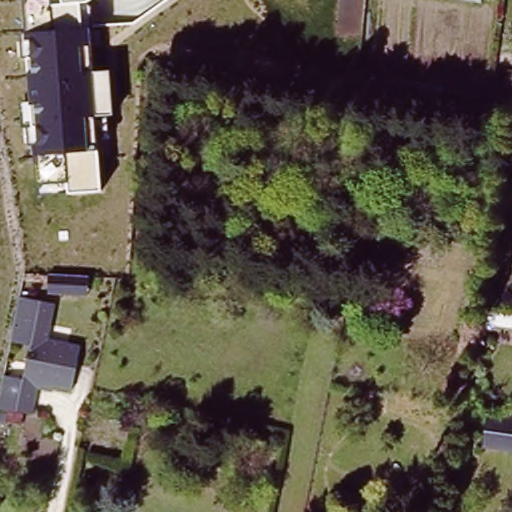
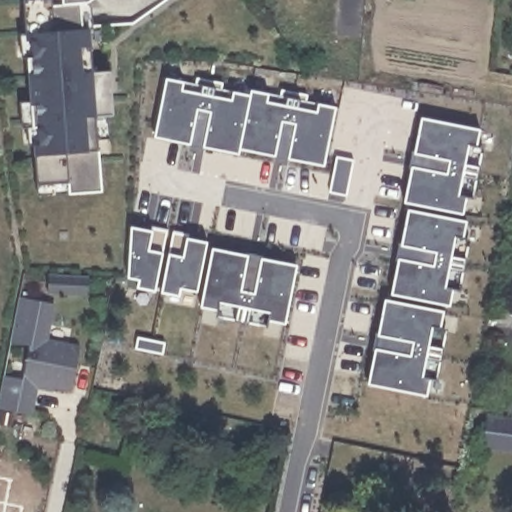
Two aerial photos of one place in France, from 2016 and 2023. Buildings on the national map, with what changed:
unchanged [(36,154),(34,132),(20,132),(18,101),(31,101),(26,36),(23,0),(88,0),(87,0),(90,29),(94,71),(112,69),(116,113),(110,114),(110,140),(99,141),(102,190),(67,194),(37,196),(37,183),(36,154)]
new [(195,82),(196,76),(209,79),(203,109),(197,108),(190,143),(171,139),(171,136),(154,133),(165,77),(195,82)]
new [(209,110),(203,109),(209,79),(222,81),(221,88),(250,93),(241,145),(240,150),(223,146),(222,149),(202,145),(209,110)]
new [(250,93),(251,90),(281,95),(282,89),(294,91),(289,120),(282,119),(276,154),(256,150),(257,148),(241,145),(250,93)]
new [(295,121),(289,120),(294,91),(307,94),(306,100),(336,106),(325,161),(308,157),(307,160),(288,156),(295,121)]
new [(416,133),(419,133),(422,116),(480,127),(474,157),(480,157),(477,171),(446,165),(447,159),(412,153),(416,133)]
new [(337,155),(354,159),(347,194),(329,190),(337,155)]
new [(410,185),(407,185),(410,165),(445,171),(446,165),(477,171),(474,192),(467,191),(463,213),(406,202),(410,185)]
new [(405,225),(407,225),(411,209),(469,219),(462,249),(469,251),(466,263),(435,257),(437,251),(401,245),(405,225)]
new [(136,287),(137,280),(122,277),(132,226),(151,230),(152,227),(167,230),(155,292),(136,287)]
new [(173,232),(188,234),(187,237),(207,241),(197,292),(181,289),(180,296),(161,293),(173,232)]
new [(211,250),(229,253),(229,250),(249,254),(242,290),(248,291),(242,321),(229,319),(230,313),(200,307),(211,250)]
new [(248,291),(254,292),(262,256),(281,261),(281,263),(297,267),(286,324),(257,318),(255,324),(242,321),(248,291)]
new [(398,277),(395,277),(399,257),(434,264),(435,257),(466,263),(462,285),(456,284),(452,305),(395,295),(398,277)]
new [(88,292),(67,291),(46,290),(47,272),(68,273),(89,274),(88,292)]
unchanged [(22,377),(29,343),(10,339),(19,294),(53,301),(46,338),(80,345),(71,388),(37,381),(31,410),(0,407),(0,388),(3,373),(22,377)]
new [(382,314),(385,315),(387,299),(445,310),(440,340),(445,340),(442,354),(412,348),(412,341),(377,334),(382,314)]
new [(137,336),(165,342),(163,354),(135,349),(137,336)]
new [(374,367),(371,366),(375,346),(411,354),(412,348),(442,354),(438,375),(432,373),(427,396),(371,384),(374,367)]
unchanged [(483,448),(493,418),(512,423),(512,455),(483,448)]

